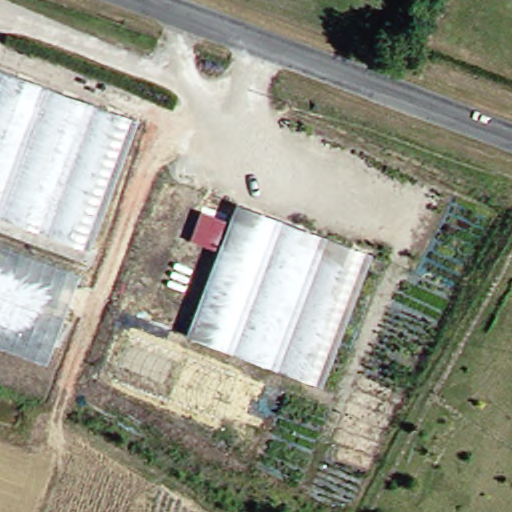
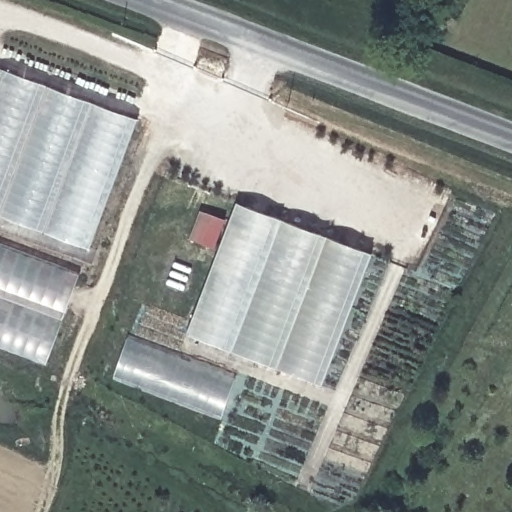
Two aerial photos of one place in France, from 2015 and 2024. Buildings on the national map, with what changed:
unchanged [(0,69),(100,102),(50,232),(0,214),(0,69)]
unchanged [(100,102),(140,117),(91,247),(50,232),(100,102)]
unchanged [(191,242),(202,212),(223,221),(232,197),(371,250),(321,386),(180,331),(211,250),(191,242)]
unchanged [(46,366),(0,348),(0,245),(78,273),(46,366)]
new [(222,419),(114,378),(128,337),(237,377),(222,419)]

